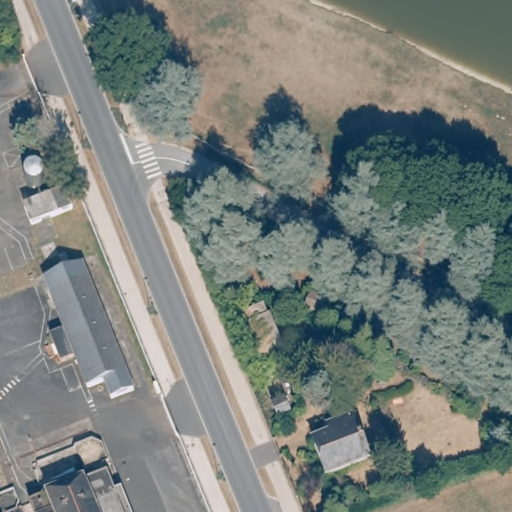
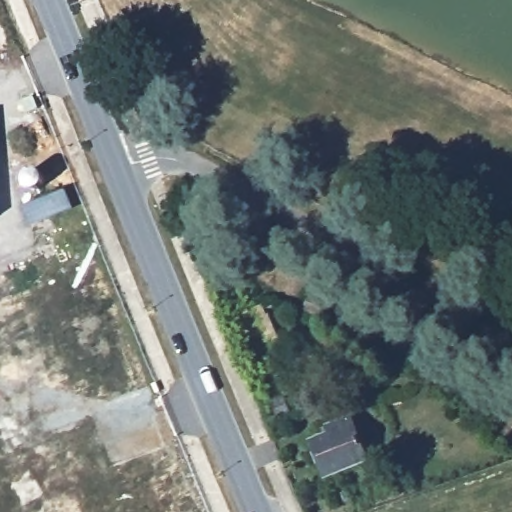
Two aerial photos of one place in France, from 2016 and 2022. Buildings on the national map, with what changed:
unchanged [(44,177),(48,178),(52,180),(55,184),(56,187),(56,191),(55,194),(53,198),(49,201),(43,202),(39,202),(36,201),(34,199),(32,196),(31,193),(31,188),(32,185),(34,181),(38,178),(41,177),(44,177)]
demolished [(86,255),(137,382),(117,391),(110,375),(96,381),(81,351),(69,356),(59,334),(74,327),(50,270),(86,255)]
unchanged [(265,296),(285,345),(251,363),(230,312),(265,296)]
unchanged [(285,399),(290,412),(277,417),(273,404),(285,399)]
unchanged [(325,478),(312,438),(320,435),(318,427),(346,418),(360,464),(325,478)]
demolished [(102,467),(121,512),(55,512),(46,491),(102,467)]

